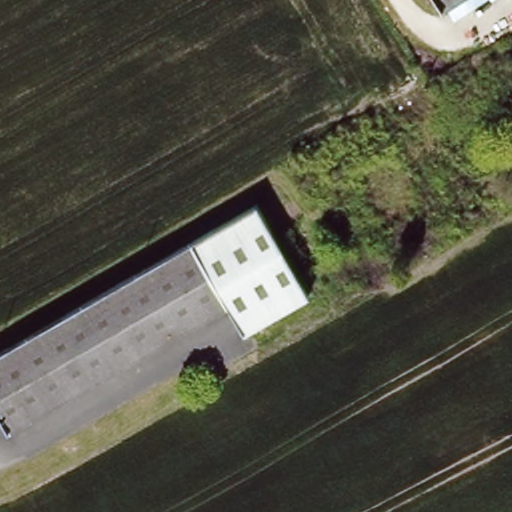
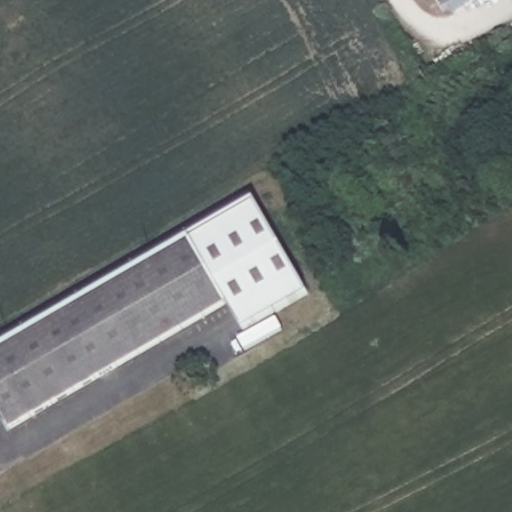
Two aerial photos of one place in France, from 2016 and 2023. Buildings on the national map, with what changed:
unchanged [(434,0),(466,0),(443,14),(434,0)]
unchanged [(309,294),(244,332),(227,304),(76,392),(9,430),(0,415),(0,352),(256,204),(309,294)]

